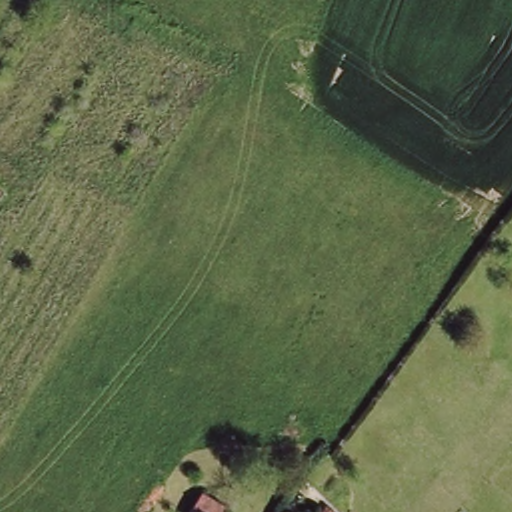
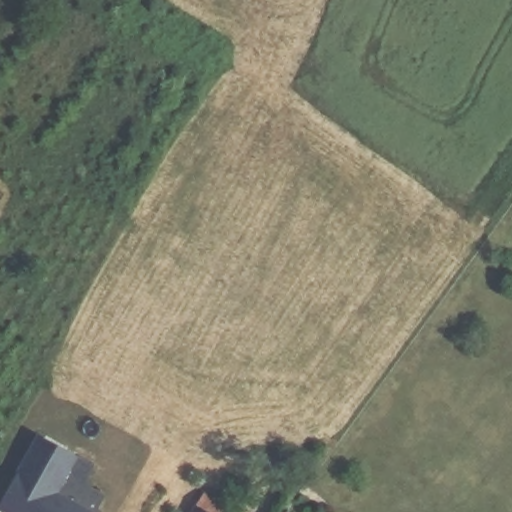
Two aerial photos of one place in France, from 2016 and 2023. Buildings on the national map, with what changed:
new [(97,512),(5,512),(0,509),(0,506),(39,432),(79,457),(60,492),(97,512)]
unchanged [(204,488),(231,504),(226,512),(190,512),(204,488)]
unchanged [(285,507),(293,512),(281,512),(285,507)]

